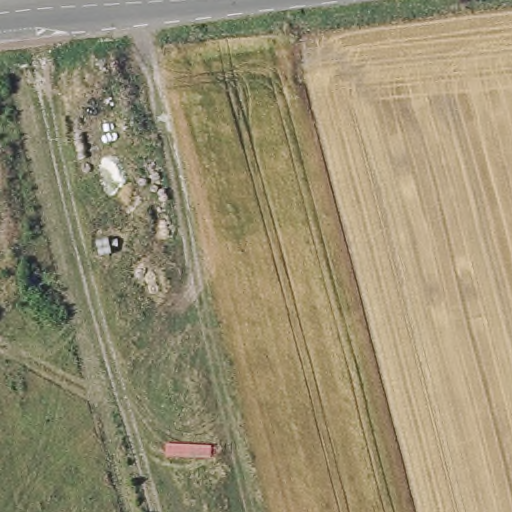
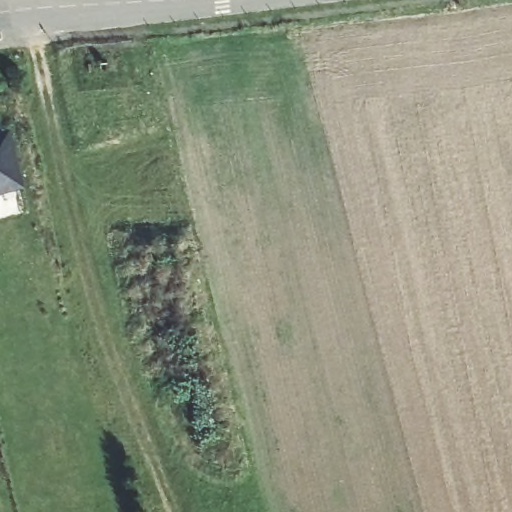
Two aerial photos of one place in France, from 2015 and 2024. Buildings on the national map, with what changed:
new [(7,134),(21,191),(0,196),(0,135),(7,134)]

